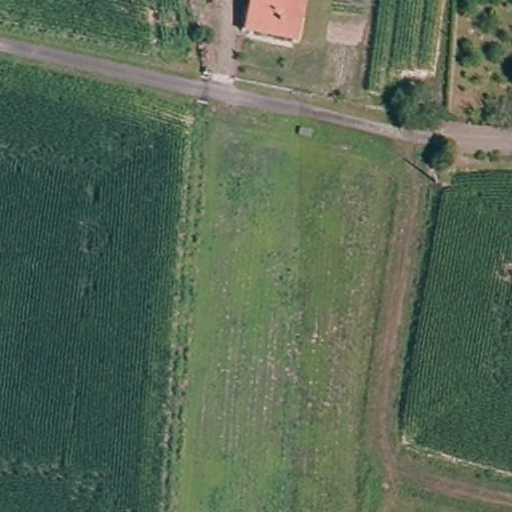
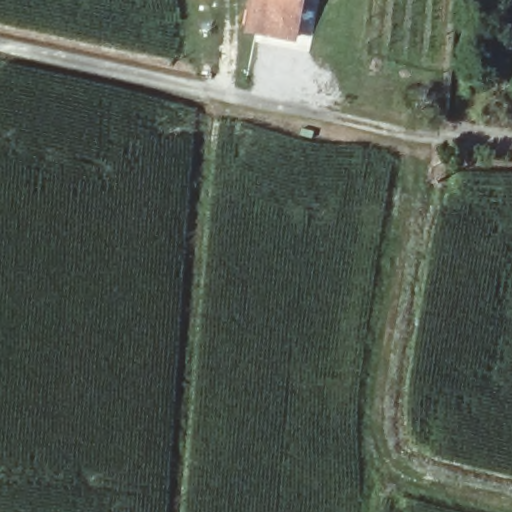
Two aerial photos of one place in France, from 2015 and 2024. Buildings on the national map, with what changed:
unchanged [(205,0),(212,0),(212,1),(205,0)]
unchanged [(302,0),(296,36),(253,28),(257,0),(302,0)]

